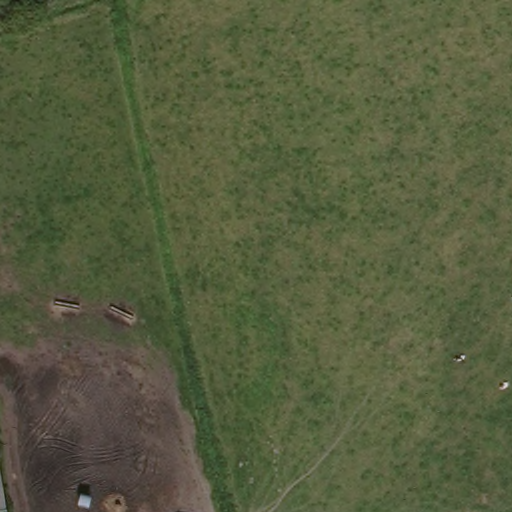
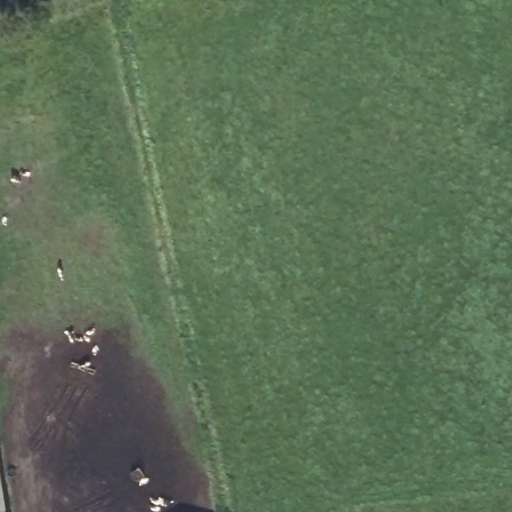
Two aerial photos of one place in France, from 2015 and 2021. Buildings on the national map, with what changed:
unchanged [(2,512),(0,512),(0,501),(2,512)]

